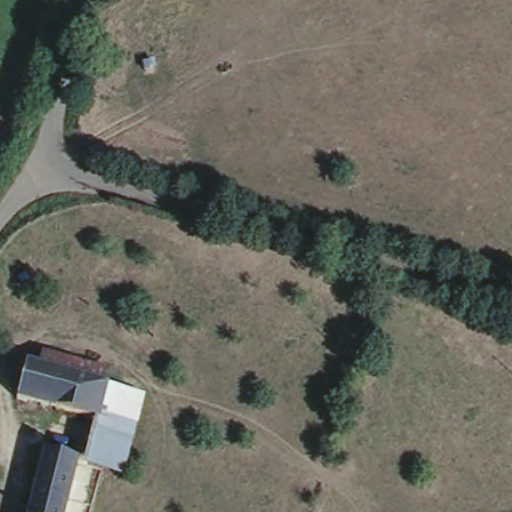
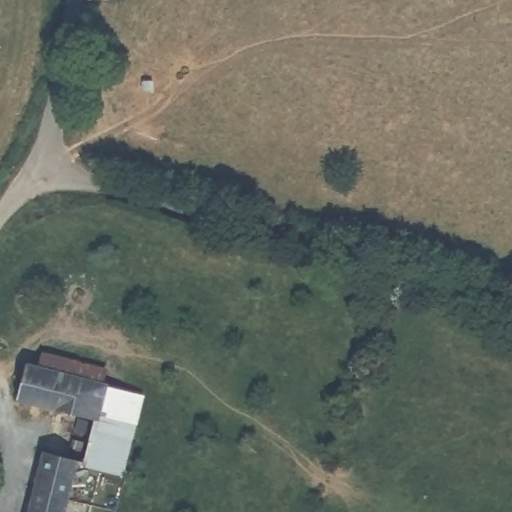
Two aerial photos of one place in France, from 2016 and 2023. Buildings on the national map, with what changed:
unchanged [(102,363),(97,378),(105,380),(85,461),(75,459),(61,512),(27,512),(44,446),(55,404),(16,394),(25,359),(43,364),(46,348),(102,363)]
unchanged [(134,388),(113,468),(85,461),(105,380),(134,388)]

